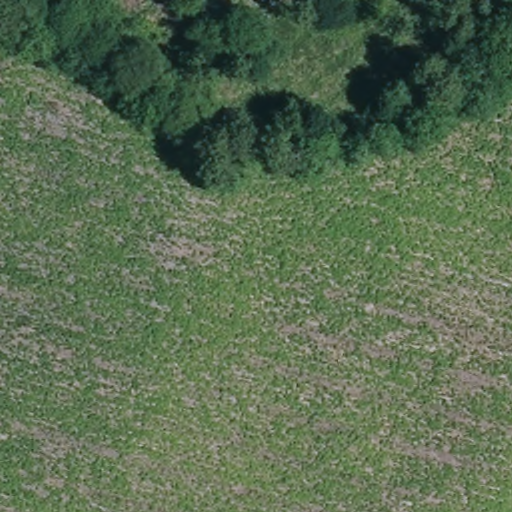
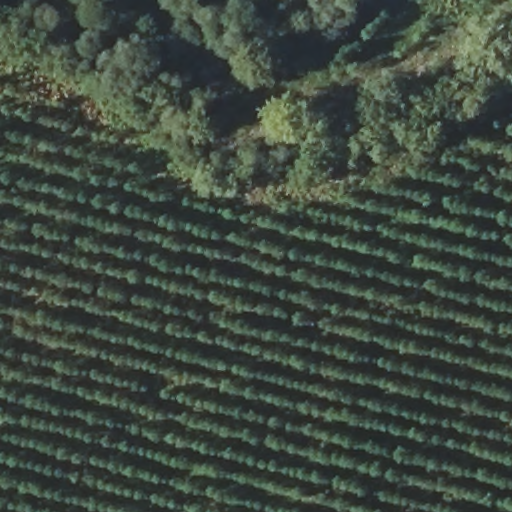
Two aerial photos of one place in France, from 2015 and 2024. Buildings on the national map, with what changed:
[]

